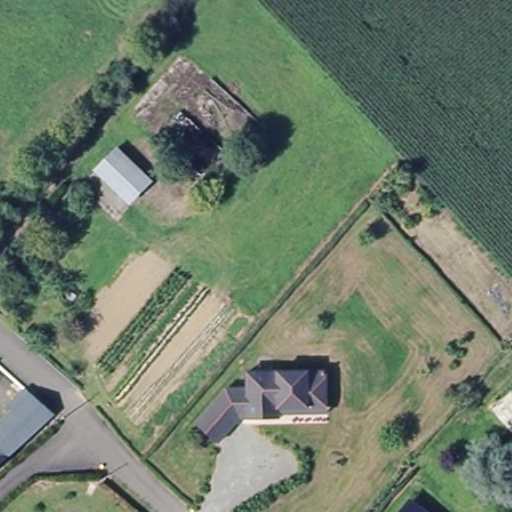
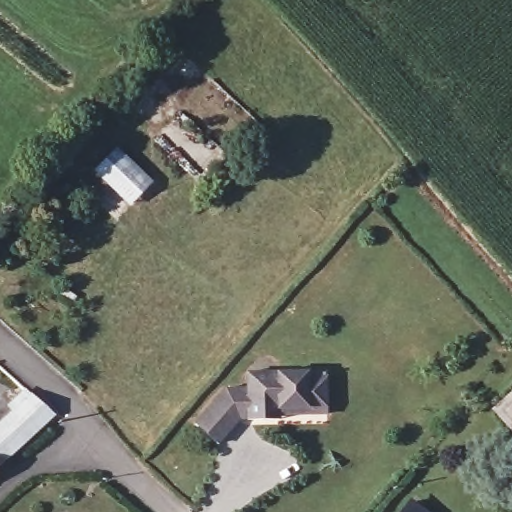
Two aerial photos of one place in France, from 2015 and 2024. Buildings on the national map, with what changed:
unchanged [(132,205),(97,171),(120,147),(155,182),(132,205)]
unchanged [(330,417),(241,419),(215,445),(192,425),(226,387),(244,388),(244,371),(325,372),(330,417)]
unchanged [(0,449),(0,419),(30,391),(54,410),(6,456),(0,449)]
unchanged [(512,393),(512,433),(492,412),(512,393)]
unchanged [(0,449),(6,456),(0,461),(0,449)]
unchanged [(433,512),(408,512),(418,500),(433,512)]

